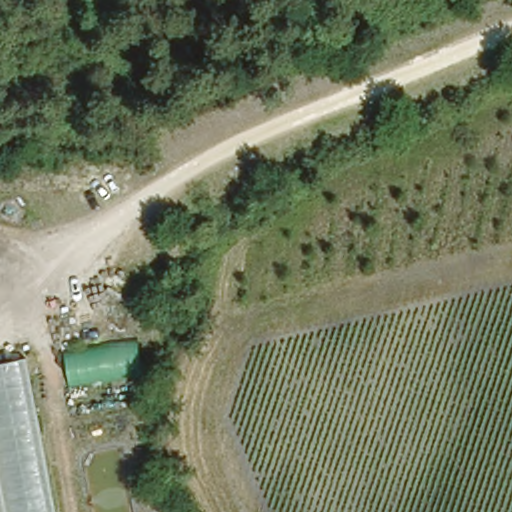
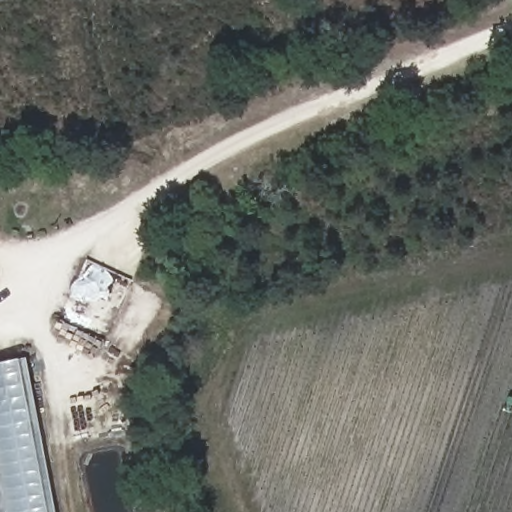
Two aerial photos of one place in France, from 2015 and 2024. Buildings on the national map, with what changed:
demolished [(70,390),(63,353),(137,340),(143,378),(70,390)]
unchanged [(58,512),(0,512),(0,360),(26,356),(58,512)]

